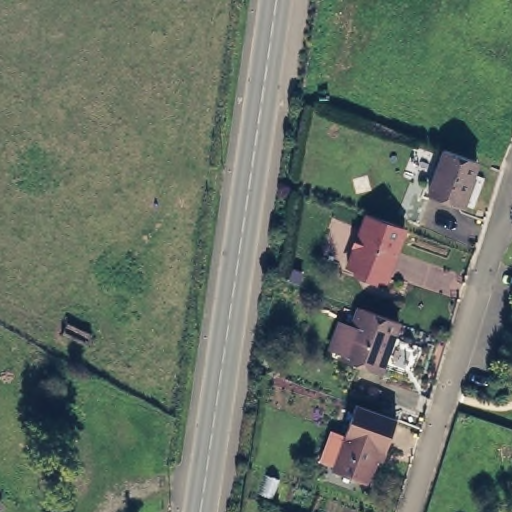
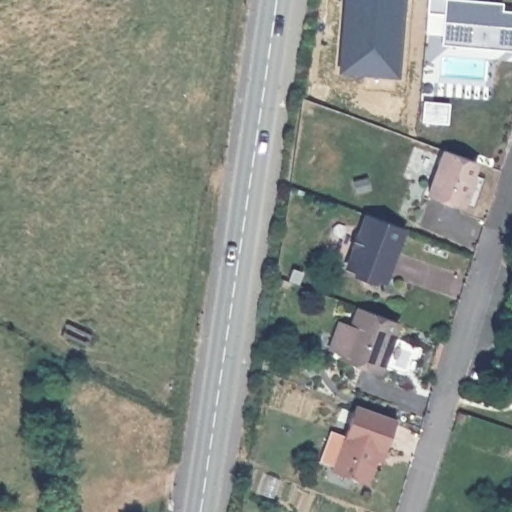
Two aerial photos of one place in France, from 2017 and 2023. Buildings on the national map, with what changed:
new [(348,0),(402,0),(399,43),(393,42),(391,73),(343,69),(348,0)]
new [(428,38),(430,15),(431,0),(464,0),(464,4),(492,5),(504,6),(504,14),(512,15),(512,52),(487,50),(446,46),(447,40),(428,38)]
unchanged [(460,205),(426,192),(441,150),(475,163),(460,205)]
unchanged [(378,282),(340,268),(359,214),(397,227),(378,282)]
unchanged [(381,370),(345,356),(348,348),(343,346),(342,350),(333,346),(342,322),(356,327),(363,307),(399,320),(381,370)]
unchanged [(382,450),(376,447),(363,480),(328,467),(352,403),(394,418),(382,450)]

